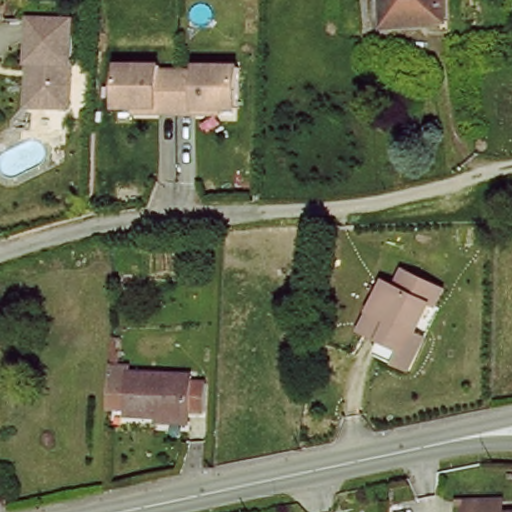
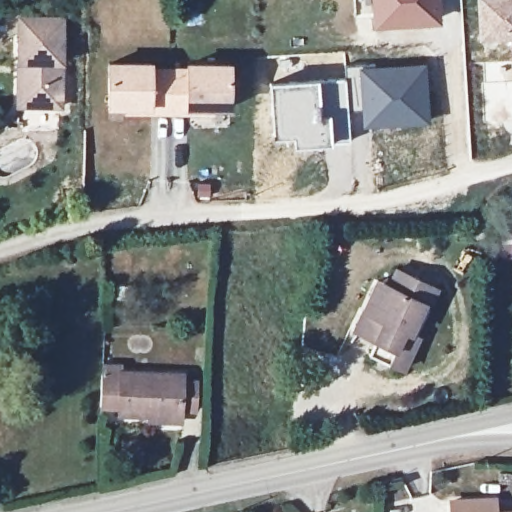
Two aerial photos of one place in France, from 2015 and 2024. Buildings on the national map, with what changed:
unchanged [(370,27),(370,0),(438,0),(439,27),(370,27)]
new [(512,43),(477,42),(475,0),(512,0),(512,43)]
unchanged [(18,69),(17,26),(60,26),(61,113),(28,113),(26,69),(18,69)]
new [(427,62),(430,125),(363,129),(357,66),(427,62)]
unchanged [(125,108),(108,108),(108,66),(150,66),(150,71),(187,71),(187,66),(229,66),(229,108),(212,108),(212,113),(188,113),(149,113),(125,113),(125,108)]
new [(347,76),(350,142),(293,146),(291,137),(272,138),(268,82),(347,76)]
unchanged [(22,109),(22,115),(8,116),(8,109),(22,109)]
unchanged [(372,341),(352,331),(362,311),(375,281),(384,285),(387,287),(395,270),(435,289),(427,306),(422,304),(408,333),(416,337),(400,370),(385,363),(366,354),(372,341)]
unchanged [(98,379),(116,379),(117,369),(182,370),(181,415),(117,414),(117,408),(97,408),(98,379)]
unchanged [(493,499),(494,512),(512,511),(512,512),(449,512),(450,500),(493,499)]

